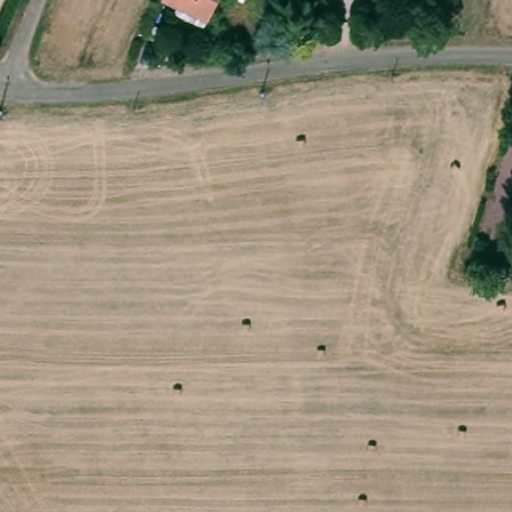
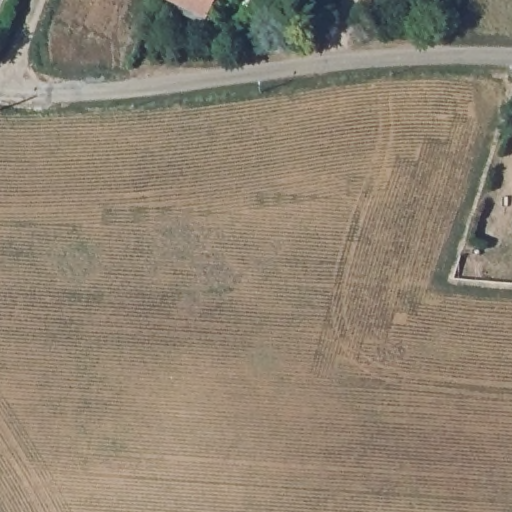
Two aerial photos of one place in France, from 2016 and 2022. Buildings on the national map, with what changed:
unchanged [(161,4),(164,0),(218,0),(204,28),(161,4)]

